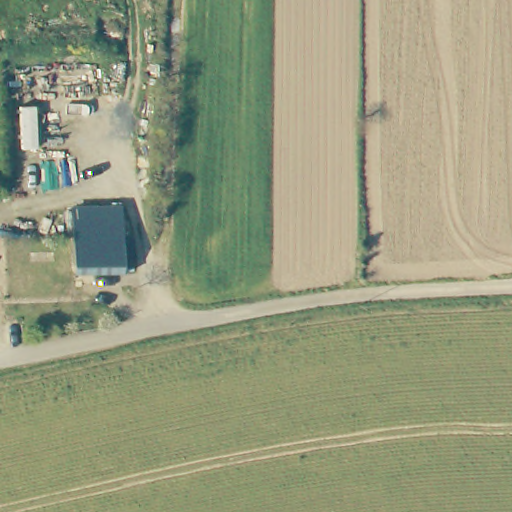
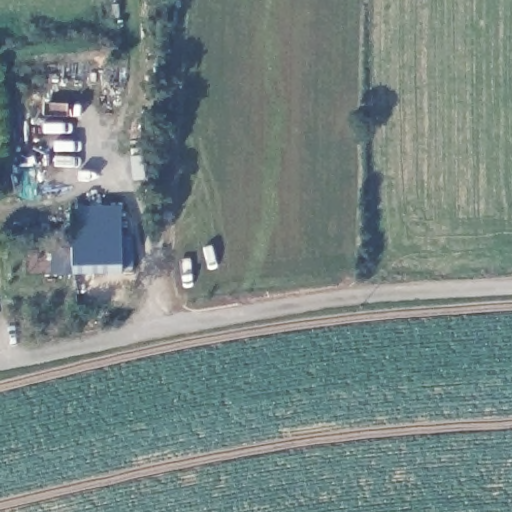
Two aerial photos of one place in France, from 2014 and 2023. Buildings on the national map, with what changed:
unchanged [(70,206),(124,205),(125,235),(71,238),(70,206)]
unchanged [(71,238),(125,235),(125,276),(72,275),(71,238)]

